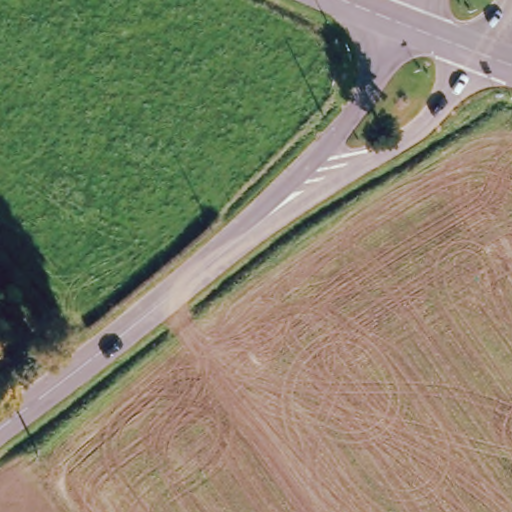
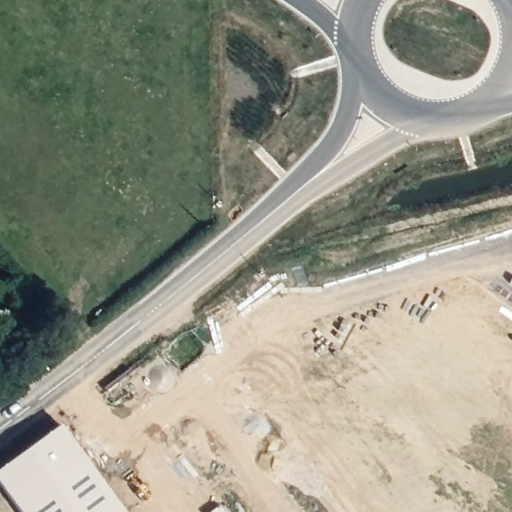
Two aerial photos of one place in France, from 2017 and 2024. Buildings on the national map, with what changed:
new [(18,512),(0,487),(0,467),(59,424),(124,512),(18,512)]

